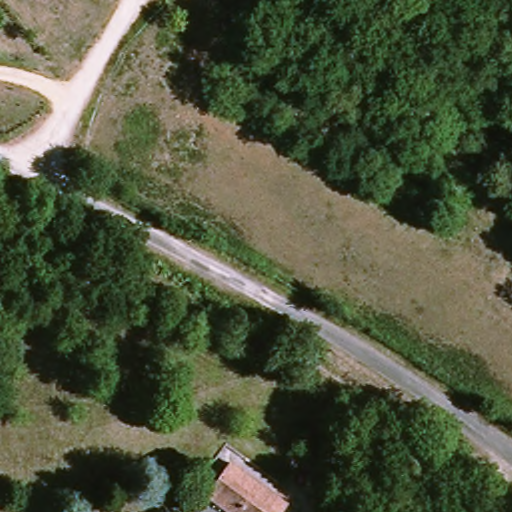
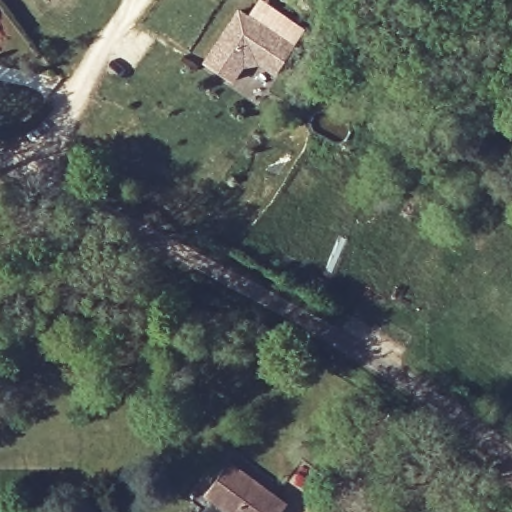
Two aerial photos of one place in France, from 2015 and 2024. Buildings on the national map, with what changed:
new [(238,8),(272,29),(282,13),(305,29),(275,76),(259,66),(243,68),(234,81),(203,62),(238,8)]
unchanged [(209,495),(231,462),(290,502),(282,512),(234,512),(209,495)]

